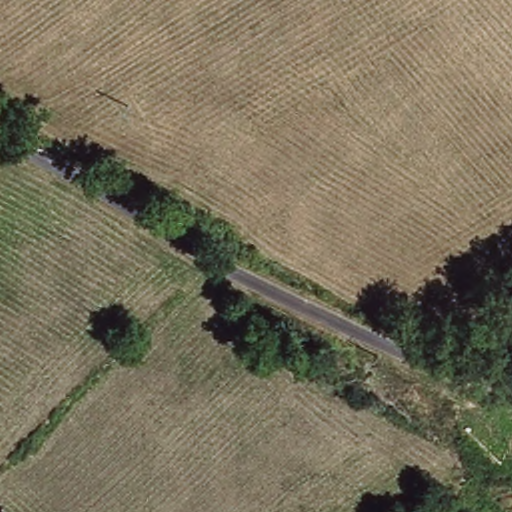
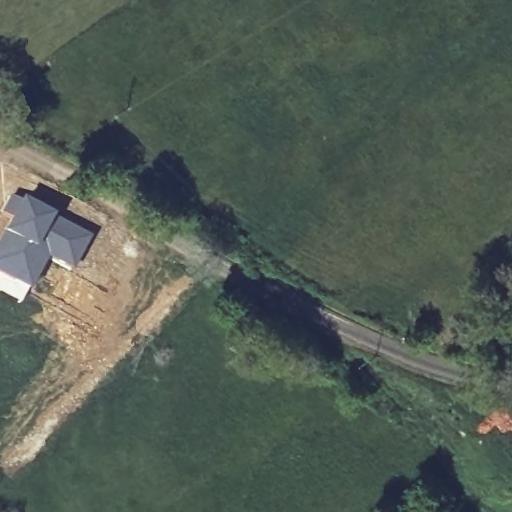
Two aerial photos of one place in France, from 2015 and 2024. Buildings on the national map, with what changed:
new [(0,215),(0,196),(0,195),(50,214),(87,237),(69,272),(45,260),(26,292),(18,305),(0,295),(0,226),(3,220),(0,215)]

